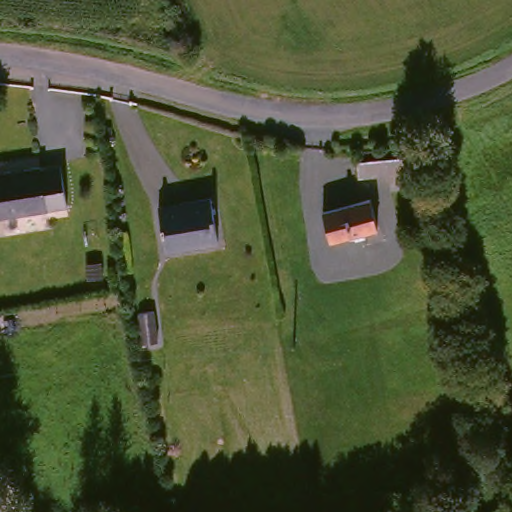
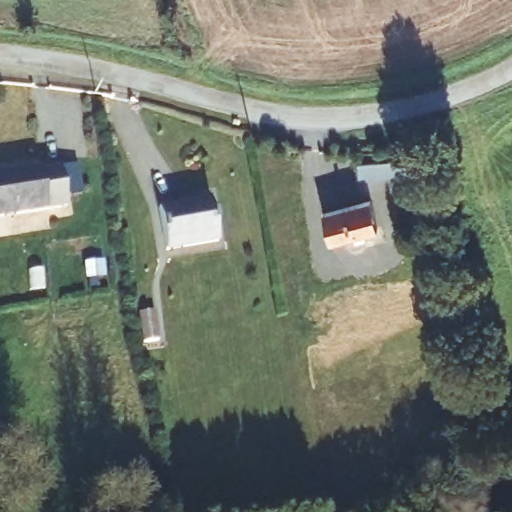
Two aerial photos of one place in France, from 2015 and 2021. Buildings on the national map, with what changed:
unchanged [(378,188),(375,174),(347,179),(343,162),(402,153),(408,183),(378,188)]
unchanged [(0,216),(0,171),(41,165),(42,170),(62,169),(67,206),(0,216)]
unchanged [(153,204),(212,198),(218,243),(159,249),(153,204)]
unchanged [(361,229),(363,238),(342,242),(339,233),(329,232),(323,208),(371,199),(376,225),(361,229)]
unchanged [(148,334),(133,336),(129,306),(144,304),(148,334)]

